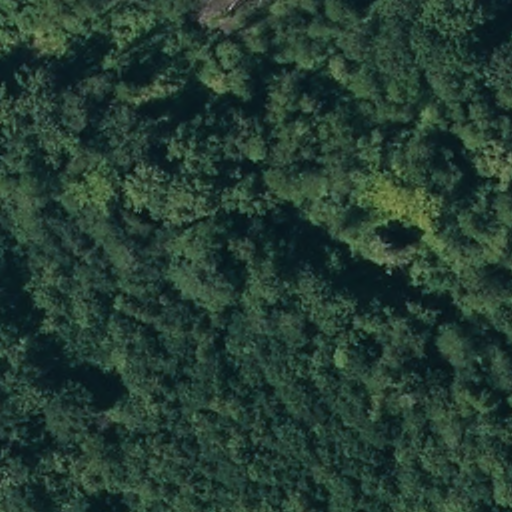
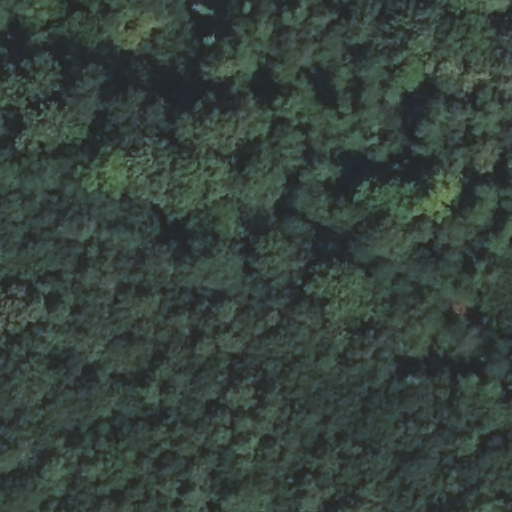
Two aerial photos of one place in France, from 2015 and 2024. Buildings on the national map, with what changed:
[]

